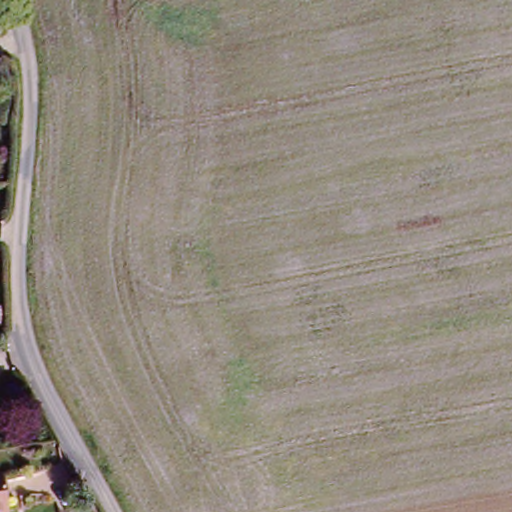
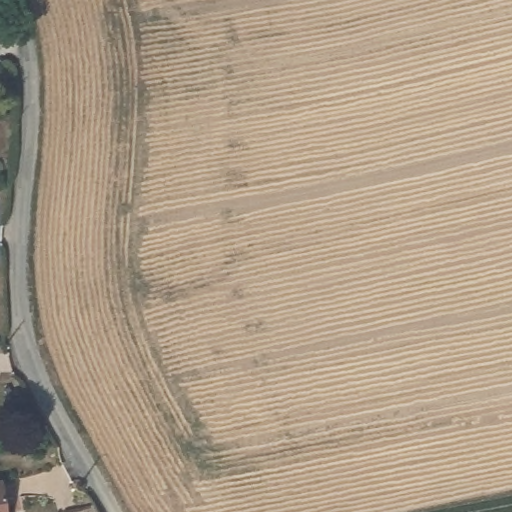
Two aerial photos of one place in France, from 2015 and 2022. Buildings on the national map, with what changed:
unchanged [(2,480),(7,512),(0,512),(0,480),(2,480)]

